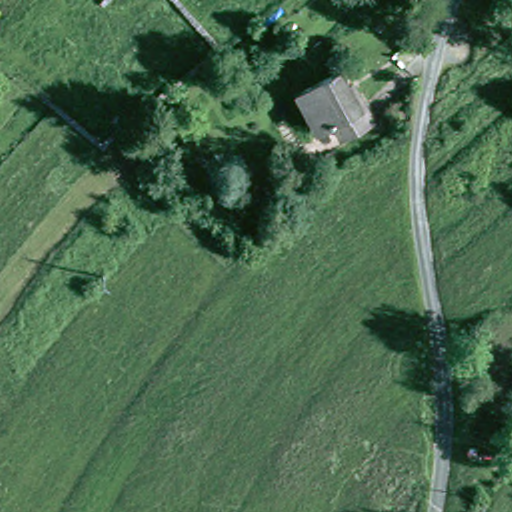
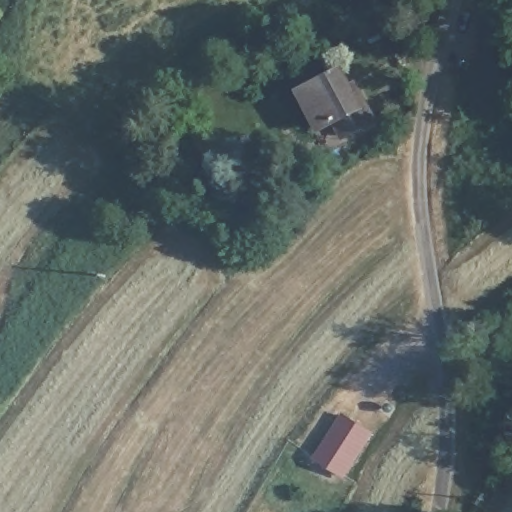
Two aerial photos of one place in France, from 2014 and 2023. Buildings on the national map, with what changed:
unchanged [(333,121),(320,128),(300,91),(345,70),(372,119),(341,136),(333,121)]
new [(372,432),(344,477),(312,457),(340,412),(372,432)]

